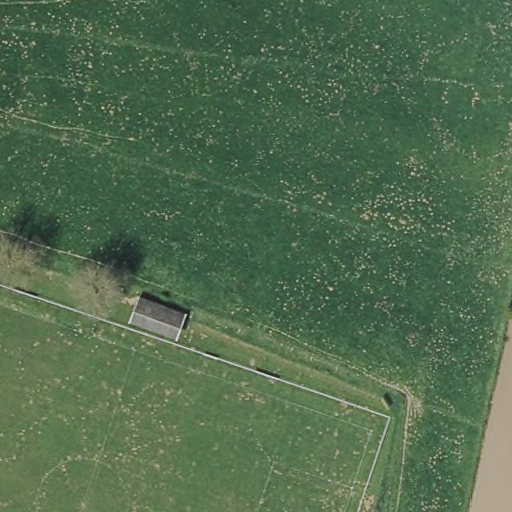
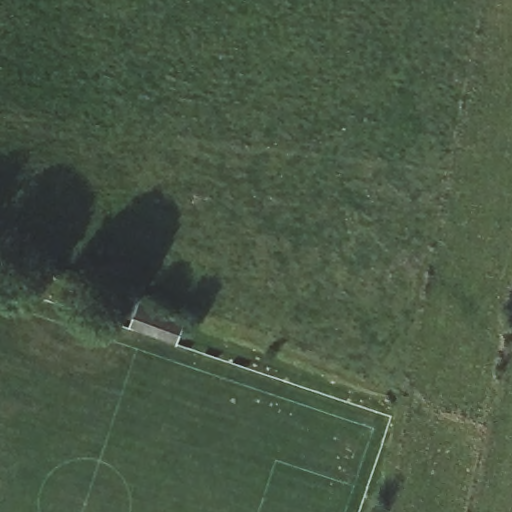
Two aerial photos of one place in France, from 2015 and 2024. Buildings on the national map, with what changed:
unchanged [(127,333),(142,302),(189,322),(177,349),(127,333)]

